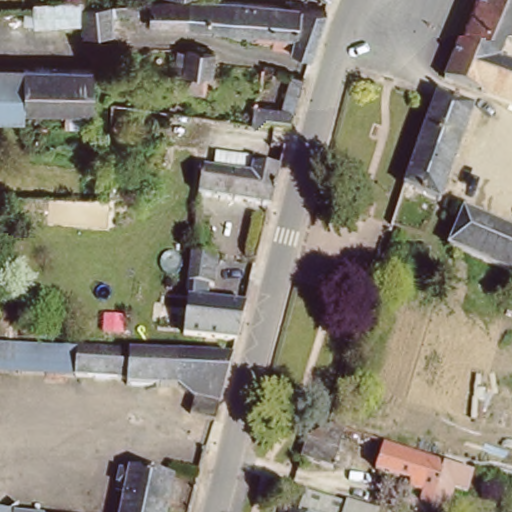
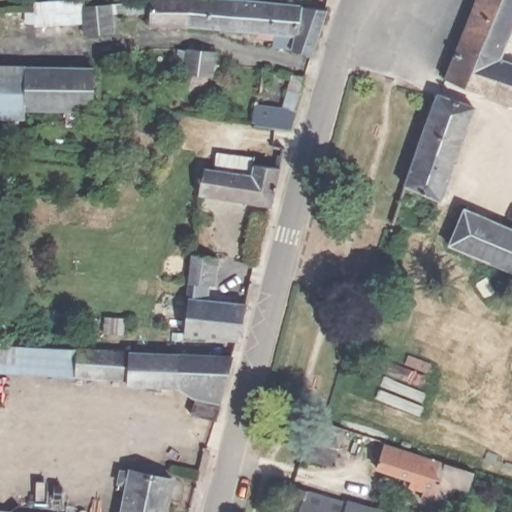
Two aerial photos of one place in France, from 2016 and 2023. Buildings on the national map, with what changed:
unchanged [(81,25),(79,0),(107,0),(109,25),(81,25)]
unchanged [(293,60),(293,55),(275,54),(276,41),(148,30),(148,18),(119,16),(119,9),(108,9),(108,0),(168,0),(326,13),(311,62),(293,60)]
unchanged [(475,0),(512,0),(512,27),(501,56),(512,61),(512,100),(445,76),(475,0)]
unchanged [(177,72),(178,61),(188,62),(188,58),(213,61),(212,75),(177,72)]
unchanged [(92,108),(27,104),(30,66),(30,63),(96,67),(92,108)]
unchanged [(30,66),(27,104),(27,124),(0,124),(0,65),(30,66)]
unchanged [(251,125),(251,122),(246,121),(248,105),(282,110),(293,76),(304,79),(288,132),(251,125)]
unchanged [(397,184),(430,101),(434,91),(473,104),(434,199),(397,184)]
unchanged [(208,202),(196,201),(198,176),(205,169),(233,172),(235,163),(277,168),(267,209),(208,202)]
unchanged [(468,209),(512,227),(512,271),(454,247),(468,209)]
unchanged [(190,254),(219,257),(216,287),(188,284),(190,254)]
unchanged [(183,334),(186,303),(243,307),(235,338),(183,334)]
unchanged [(0,368),(0,347),(81,351),(80,373),(0,368)]
unchanged [(189,424),(195,403),(186,385),(135,382),(133,377),(80,373),(81,351),(234,358),(216,429),(189,424)]
unchanged [(300,449),(307,429),(326,418),(343,424),(333,457),(300,449)]
unchanged [(472,467),(467,479),(455,476),(448,497),(444,496),(424,489),(426,482),(407,477),(409,469),(381,461),(387,442),(454,462),(472,467)]
unchanged [(120,492),(124,472),(134,473),(134,471),(176,479),(169,512),(125,512),(129,494),(120,492)]
unchanged [(346,506),(348,501),(386,512),(286,512),(293,490),(346,506)]
unchanged [(5,503),(4,512),(0,512),(0,503),(5,503)]
unchanged [(31,507),(31,511),(37,512),(4,512),(5,503),(31,507)]

